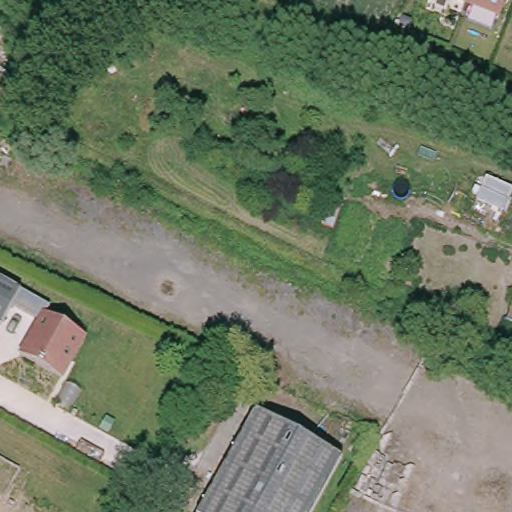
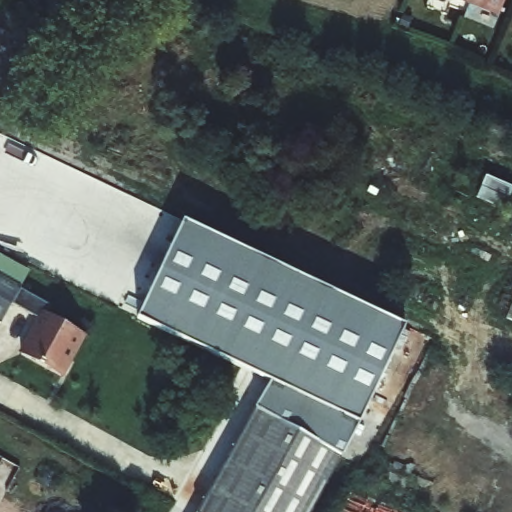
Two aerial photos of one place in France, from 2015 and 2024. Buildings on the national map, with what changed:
unchanged [(506,0),(500,15),(459,0),(506,0)]
new [(270,382),(137,318),(184,220),(405,326),(359,424),(270,382)]
unchanged [(47,306),(44,313),(39,321),(10,305),(0,322),(0,278),(47,306)]
unchanged [(44,313),(82,336),(57,378),(18,355),(39,321),(44,313)]
new [(342,454),(255,407),(270,382),(359,424),(342,454)]
unchanged [(255,407),(342,454),(310,512),(197,512),(255,407)]

